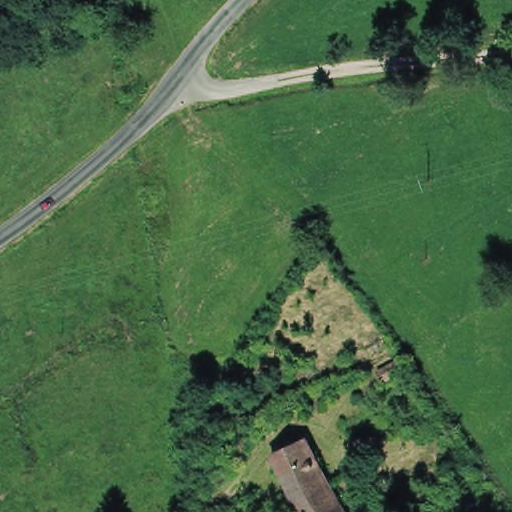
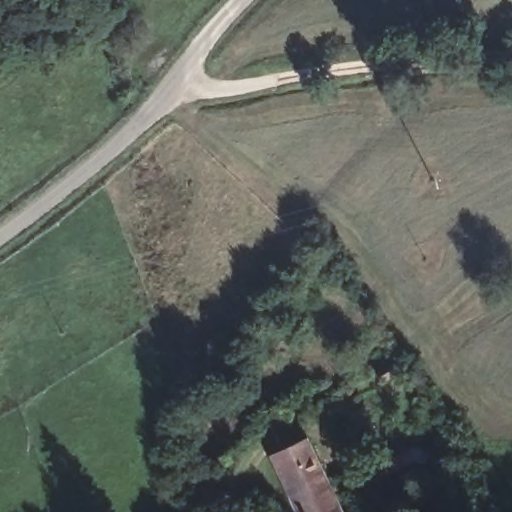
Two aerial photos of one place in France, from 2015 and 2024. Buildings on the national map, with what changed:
unchanged [(295,512),(268,457),(307,439),(342,512),(295,512)]

